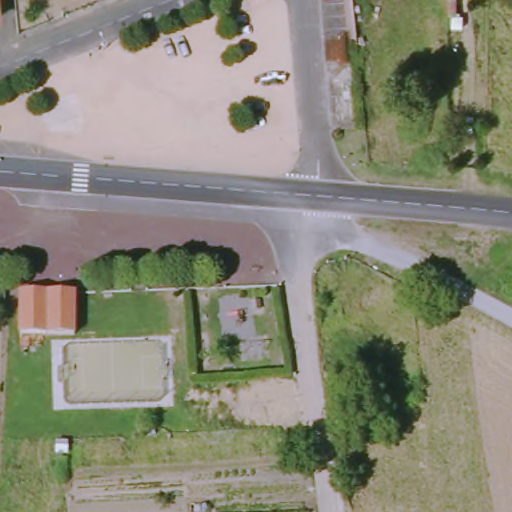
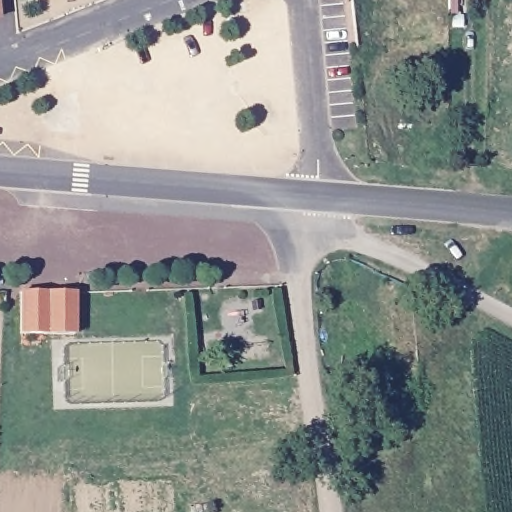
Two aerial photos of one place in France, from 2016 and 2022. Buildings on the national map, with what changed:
unchanged [(41,333),(41,291),(71,290),(71,333),(41,333)]
unchanged [(15,334),(15,291),(41,291),(41,333),(15,334)]

